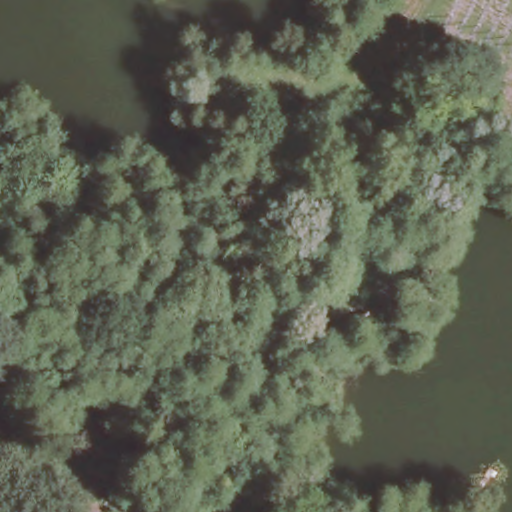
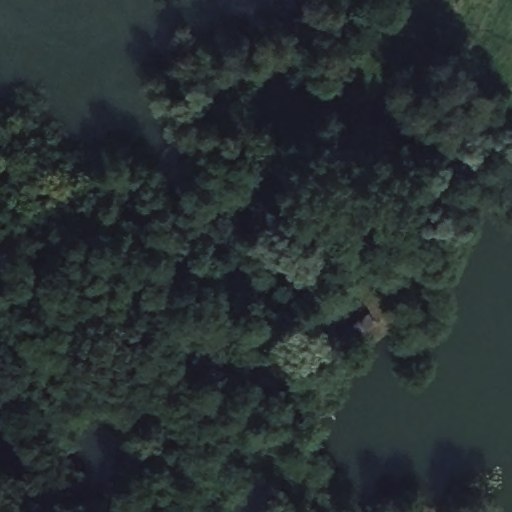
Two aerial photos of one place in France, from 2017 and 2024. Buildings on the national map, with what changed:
unchanged [(295,336),(279,327),(296,309),(309,321),(295,336)]

